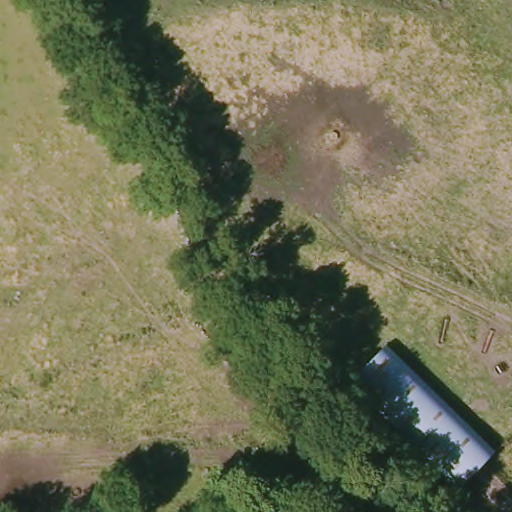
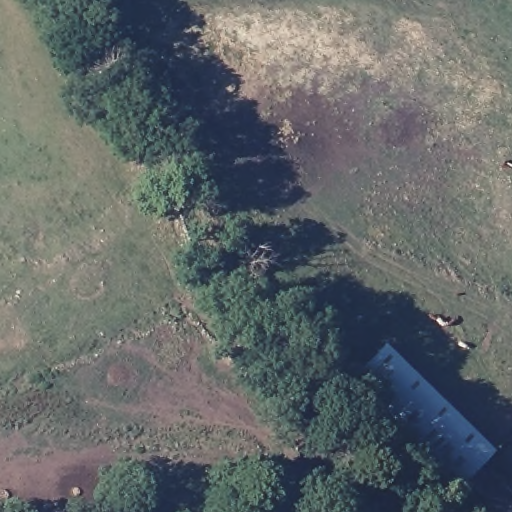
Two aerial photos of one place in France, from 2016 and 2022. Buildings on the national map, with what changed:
unchanged [(487,453),(450,492),(342,387),(379,349),(487,453)]

